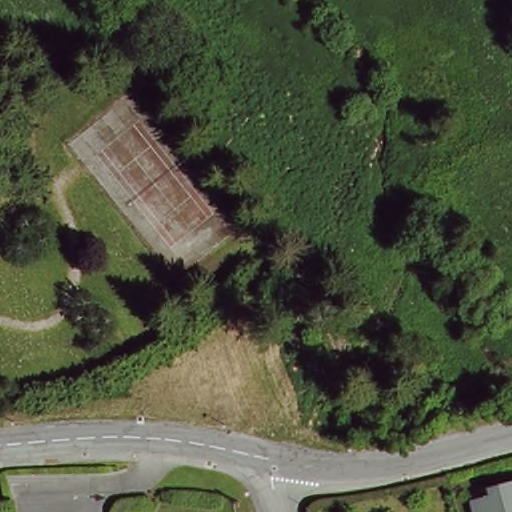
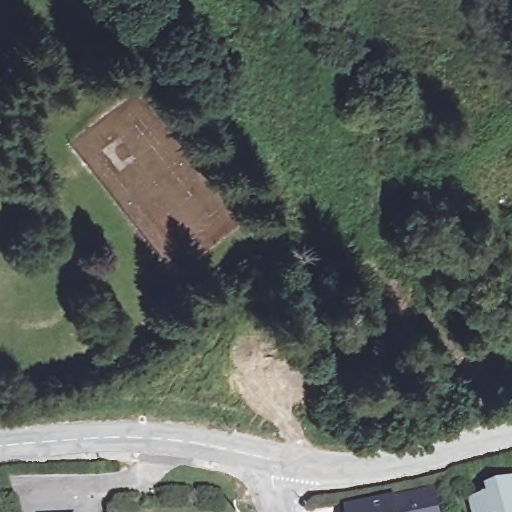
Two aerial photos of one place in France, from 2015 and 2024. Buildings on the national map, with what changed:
new [(346,506),(397,496),(438,489),(442,512),(340,512),(339,508),(346,506)]
unchanged [(479,512),(478,507),(507,499),(505,491),(512,490),(512,512),(479,512)]

